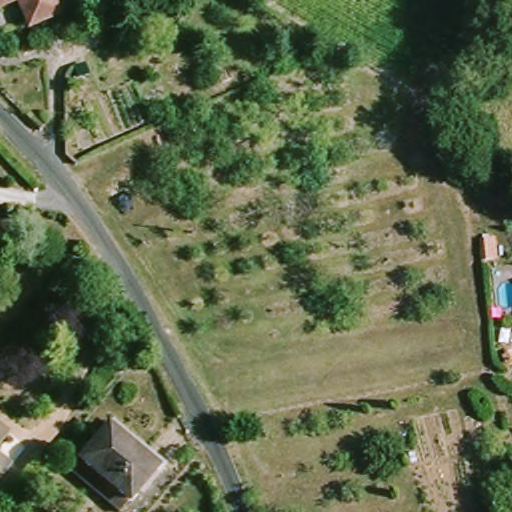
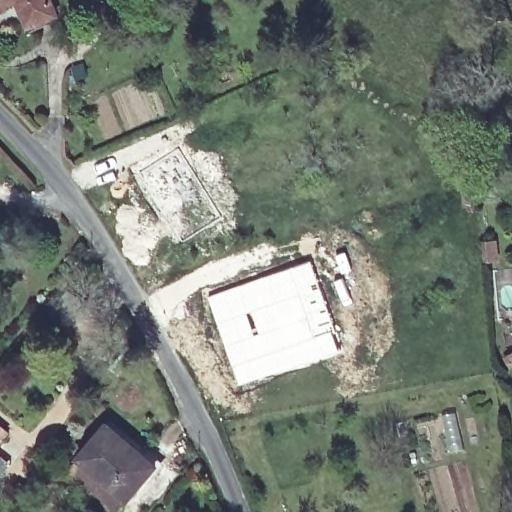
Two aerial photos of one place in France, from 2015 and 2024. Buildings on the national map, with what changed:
unchanged [(27,34),(15,4),(0,10),(0,0),(53,0),(61,20),(27,34)]
new [(312,260),(331,314),(342,352),(303,366),(236,386),(206,297),(312,260)]
unchanged [(12,439),(0,453),(0,429),(12,439)]
unchanged [(100,432),(153,476),(124,510),(73,465),(100,432)]

